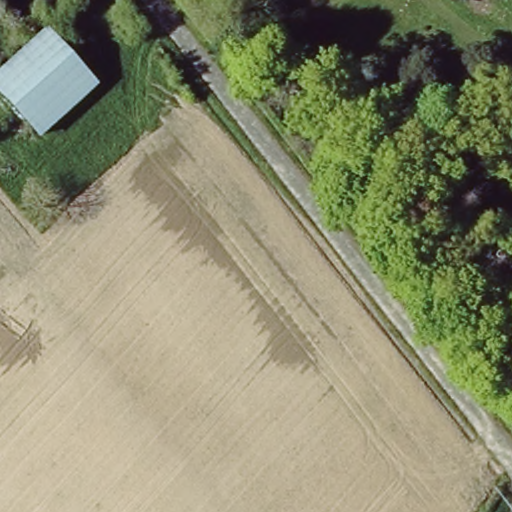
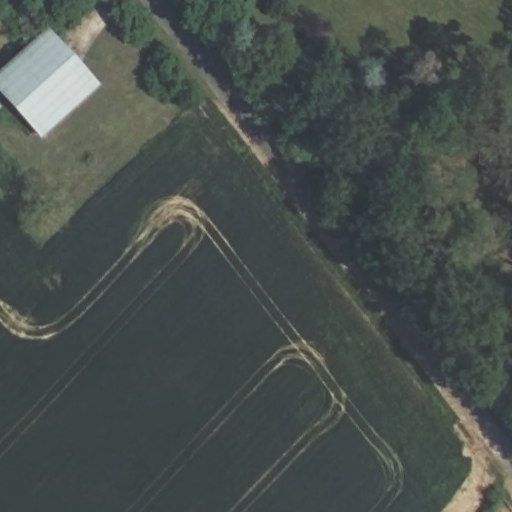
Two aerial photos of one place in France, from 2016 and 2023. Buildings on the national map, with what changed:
unchanged [(104,84),(48,135),(0,82),(0,79),(53,29),(104,84)]

